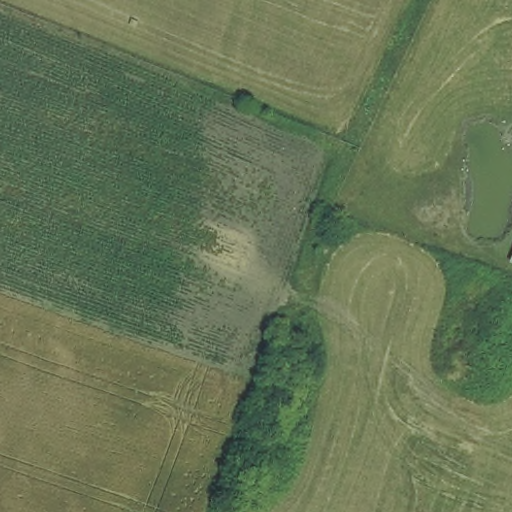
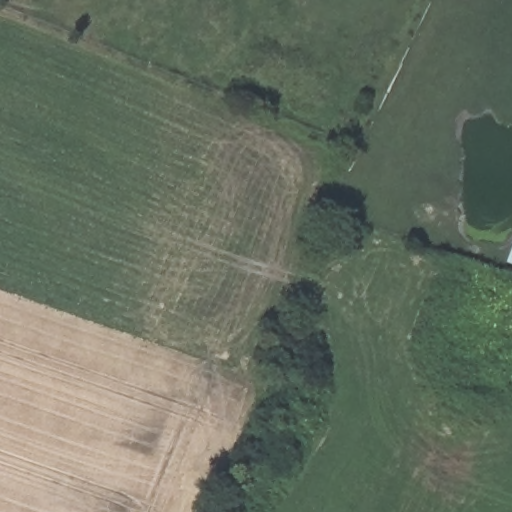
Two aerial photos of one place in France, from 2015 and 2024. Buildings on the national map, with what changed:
unchanged [(512,240),(512,264),(498,260),(512,240)]

